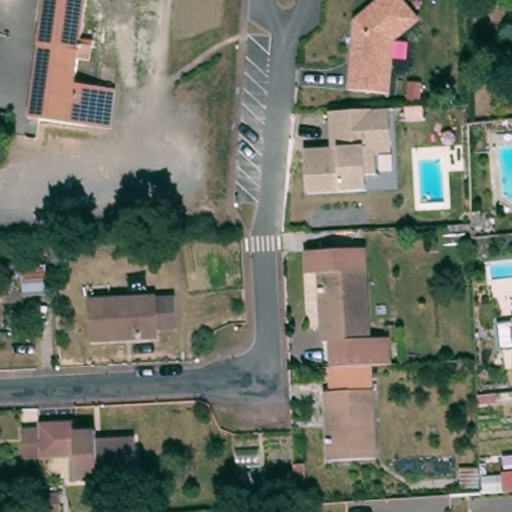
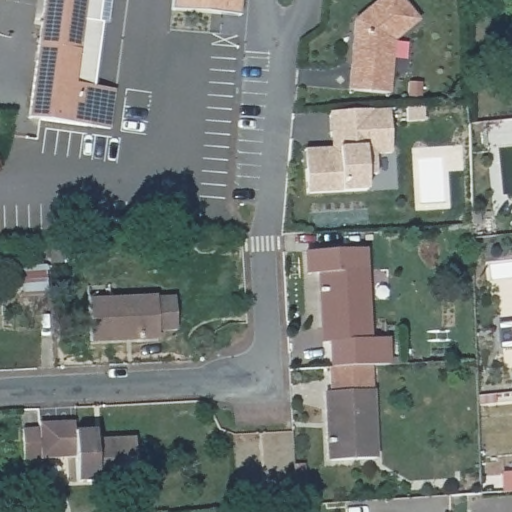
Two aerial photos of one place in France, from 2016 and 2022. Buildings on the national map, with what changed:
unchanged [(94,48),(92,64),(83,64),(80,87),(99,89),(92,127),(33,119),(48,0),(90,0),(84,45),(94,48)]
new [(173,9),(174,0),(242,0),(241,14),(173,9)]
unchanged [(379,0),(405,0),(420,21),(393,42),(390,93),(348,90),(354,20),(379,0)]
unchanged [(306,195),(303,147),(331,146),(330,111),(389,107),(391,149),(364,145),(365,192),(340,192),(306,195)]
unchanged [(326,273),(313,274),(311,251),(371,249),(376,339),(394,338),(395,365),(377,366),(337,367),(335,342),(328,342),(327,327),(329,327),(326,273)]
unchanged [(111,338),(111,340),(91,341),(88,301),(175,296),(177,330),(159,331),(159,336),(139,337),(126,337),(111,338)]
unchanged [(337,367),(377,366),(381,458),(336,461),(333,408),(331,408),(331,392),(336,392),(334,367),(337,367)]
unchanged [(79,422),(80,432),(101,431),(101,440),(140,437),(141,458),(126,459),(127,480),(82,482),(81,457),(46,457),(29,458),(28,428),(45,428),(45,423),(79,422)]
unchanged [(286,496),(285,483),(295,483),(295,495),(286,496)]
unchanged [(42,495),(59,494),(59,512),(43,512),(42,495)]

